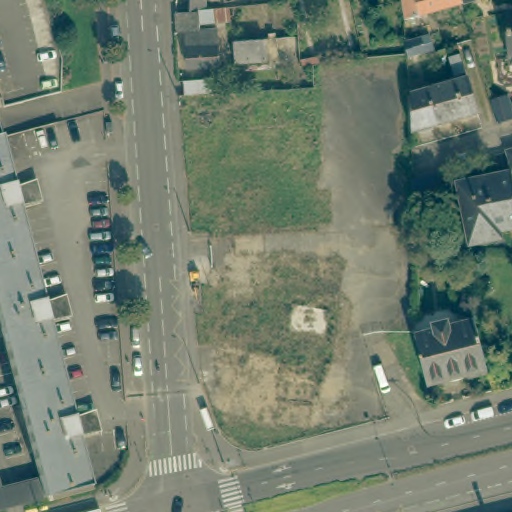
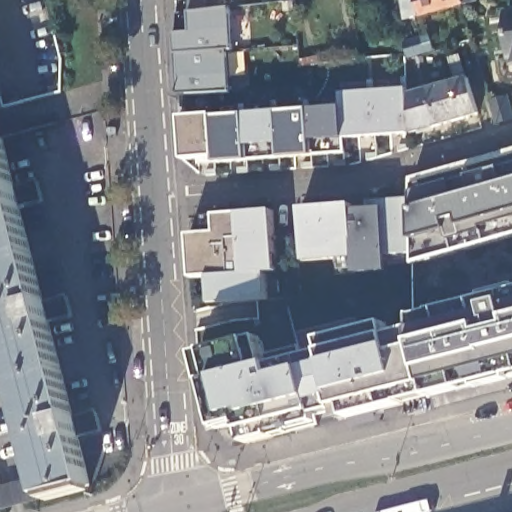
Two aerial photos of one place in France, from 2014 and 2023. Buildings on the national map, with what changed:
unchanged [(189,0),(205,0),(205,5),(201,5),(189,7),(189,0)]
unchanged [(409,15),(407,0),(467,0),(409,15)]
demolished [(189,7),(201,5),(205,5),(228,3),(228,16),(199,19),(199,25),(216,24),(219,61),(187,63),(185,27),(175,28),(175,8),(189,7)]
new [(229,7),(234,51),(229,52),(232,94),(179,97),(175,33),(190,32),(189,12),(229,7)]
unchanged [(501,8),(512,7),(512,67),(506,68),(501,8)]
demolished [(219,41),(272,37),(274,58),(220,62),(219,41)]
unchanged [(410,58),(406,44),(430,37),(435,52),(410,58)]
demolished [(184,96),(182,81),(210,79),(211,94),(210,94),(211,108),(179,111),(177,96),(184,96)]
unchanged [(412,132),(411,95),(467,79),(477,113),(412,132)]
new [(214,115),(246,113),(276,111),(311,109),(340,107),(340,93),(408,88),(407,133),(344,138),(345,153),(312,155),(282,157),(247,159),(215,162),(215,157),(185,160),(181,118),(214,115)]
unchanged [(491,104),(491,102),(508,97),(512,110),(512,119),(497,123),(491,104)]
unchanged [(9,182),(16,180),(16,183),(31,190),(33,198),(21,199),(21,200),(15,202),(39,297),(45,296),(60,305),(62,313),(50,314),(50,316),(44,317),(68,412),(74,410),(90,421),(92,427),(80,428),(80,430),(73,432),(85,481),(17,499),(12,479),(35,474),(0,337),(0,147),(9,182)]
demolished [(500,151),(512,149),(512,171),(506,173),(500,151)]
new [(415,254),(388,256),(389,272),(357,274),(355,259),(305,263),(301,208),(353,205),(353,210),(370,210),(368,202),(413,199),(413,193),(413,178),(512,150),(512,237),(415,264),(415,254)]
demolished [(397,160),(402,159),(403,164),(398,165),(397,160)]
demolished [(403,165),(408,164),(410,170),(405,171),(403,165)]
demolished [(265,165),(268,223),(234,226),(197,229),(190,229),(188,212),(209,208),(208,181),(221,180),(221,169),(265,165)]
demolished [(407,180),(435,171),(448,167),(449,186),(437,188),(438,201),(407,210),(407,180)]
demolished [(487,237),(483,239),(480,240),(475,240),(471,239),(468,236),(465,233),(455,186),(507,175),(512,200),(512,227),(490,231),(487,237)]
new [(240,214),(273,212),(278,273),(268,273),(270,301),(214,305),(212,275),(193,277),(190,235),(217,234),(216,215),(240,214)]
demolished [(276,247),(338,257),(334,289),(346,306),(338,358),(341,358),(335,388),(320,385),(318,401),(304,398),(300,414),(272,409),(269,421),(225,413),(227,399),(212,396),(218,368),(231,370),(235,341),(213,336),(216,319),(211,318),(207,264),(242,271),(276,247)]
new [(340,420),(337,411),(317,416),(320,424),(247,443),(245,432),(242,424),(220,430),(207,381),(204,382),(197,353),(207,351),(250,341),(261,338),(269,366),(272,364),(325,352),(322,339),(386,323),(390,336),(415,329),(415,317),(512,292),(512,377),(430,397),(340,420)]
demolished [(487,369),(427,385),(414,337),(433,332),(432,326),(448,322),(449,328),(475,321),(487,369)]
demolished [(1,503),(0,503),(0,497),(1,503)]

